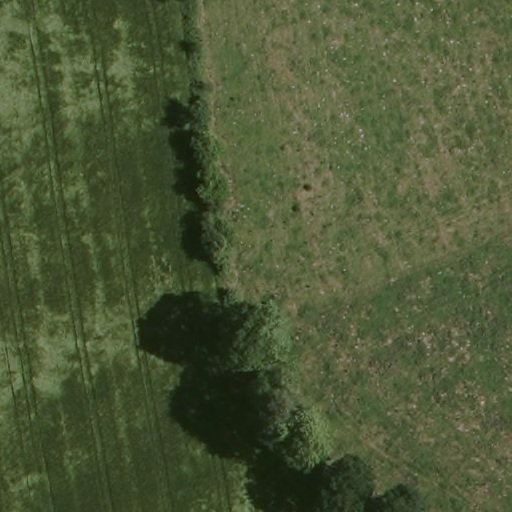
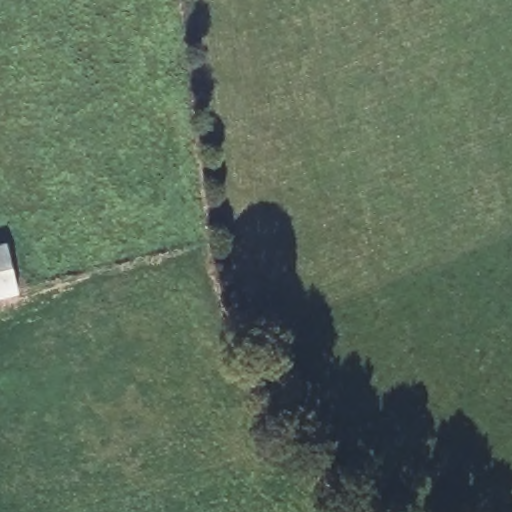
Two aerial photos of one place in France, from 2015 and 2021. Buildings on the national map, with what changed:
new [(4,241),(19,291),(0,297),(0,242),(4,241)]

